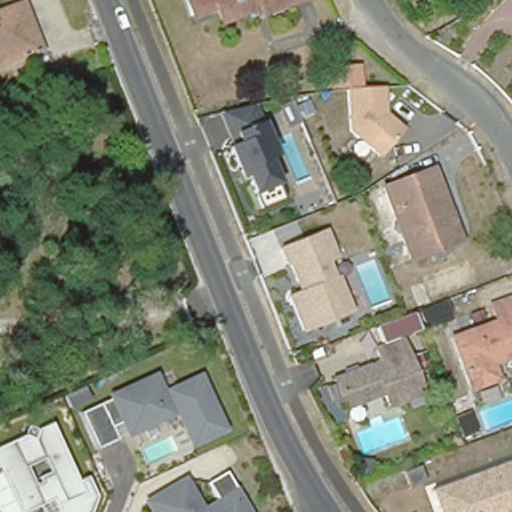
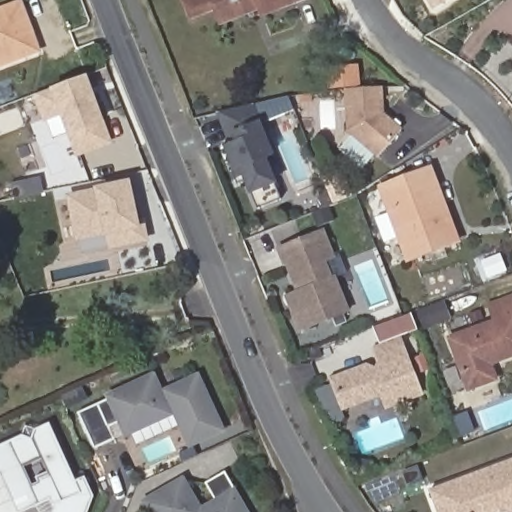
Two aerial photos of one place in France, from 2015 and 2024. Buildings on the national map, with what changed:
unchanged [(260,4),(221,19),(215,3),(187,14),(183,0),(293,0),(262,11),(260,4)]
new [(426,0),(449,0),(432,10),(426,0)]
unchanged [(0,67),(0,14),(22,5),(39,54),(0,67)]
unchanged [(386,111),(405,128),(380,157),(347,131),(347,90),(325,91),(325,68),(360,64),(361,89),(385,88),(386,111)]
new [(69,139),(65,130),(54,139),(47,122),(45,123),(34,96),(50,89),(87,75),(105,124),(114,144),(75,159),(69,139)]
unchanged [(277,153),(268,155),(285,199),(258,208),(249,187),(239,187),(217,138),(225,135),(215,111),(255,101),(277,153)]
unchanged [(410,262),(381,189),(430,170),(458,243),(410,262)]
new [(95,188),(130,179),(140,220),(146,220),(150,243),(110,252),(105,238),(105,234),(76,242),(66,195),(95,188)]
unchanged [(340,260),(333,263),(352,313),(300,332),(287,297),(298,292),(282,247),(327,228),(340,260)]
unchanged [(488,362),(495,378),(467,388),(446,337),(492,319),(486,303),(512,293),(512,351),(488,362)]
unchanged [(425,315),(427,321),(418,324),(416,319),(425,315)]
unchanged [(423,362),(427,374),(416,378),(422,396),(388,410),(382,397),(365,389),(358,401),(344,407),(333,380),(369,367),(378,372),(382,365),(376,350),(402,340),(412,367),(423,362)]
unchanged [(227,433),(189,452),(175,418),(94,451),(75,409),(160,374),(164,383),(199,370),(227,433)]
unchanged [(0,445),(49,423),(75,481),(85,477),(94,497),(88,512),(40,512),(35,506),(22,512),(0,512),(0,445)]
unchanged [(446,447),(444,439),(452,437),(455,444),(446,447)]
unchanged [(425,487),(512,454),(512,512),(435,512),(425,487)]
unchanged [(249,512),(149,512),(142,500),(189,479),(201,504),(214,499),(207,480),(227,473),(249,512)]

